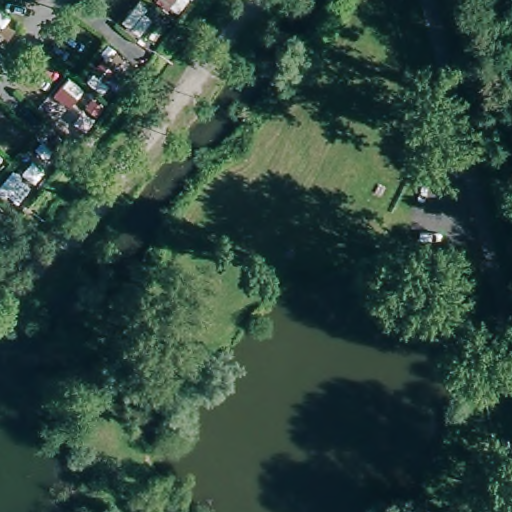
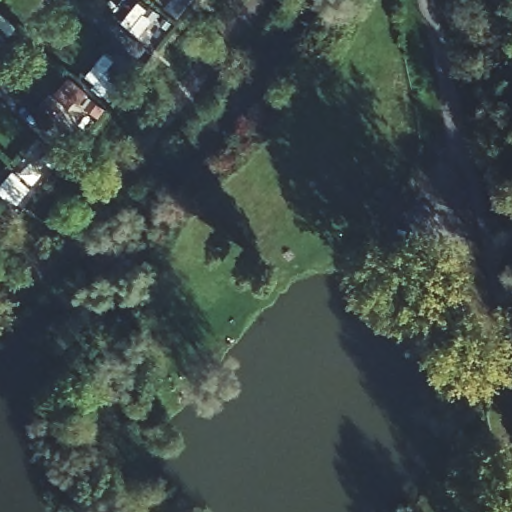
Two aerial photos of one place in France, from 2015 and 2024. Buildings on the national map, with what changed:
[]

